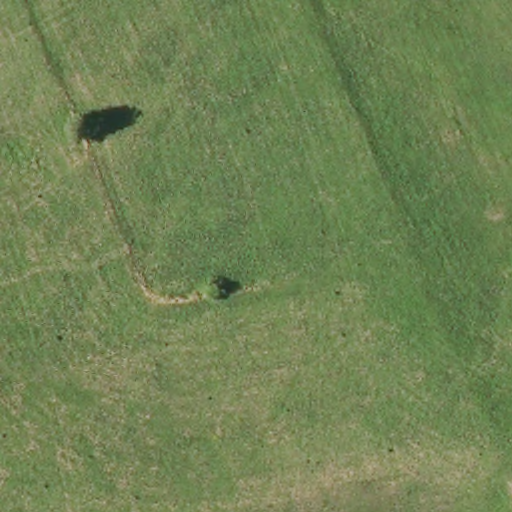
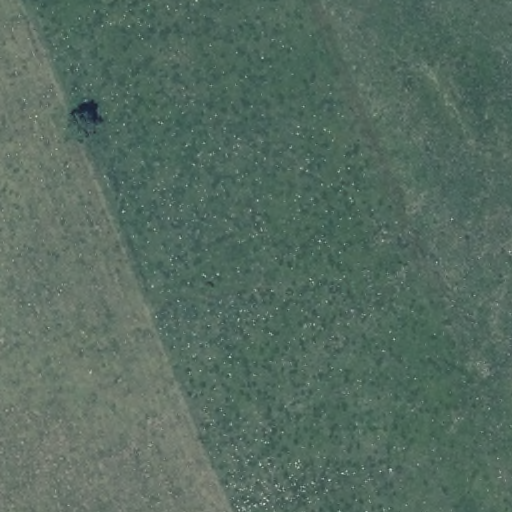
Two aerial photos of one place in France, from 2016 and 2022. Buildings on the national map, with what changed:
[]

